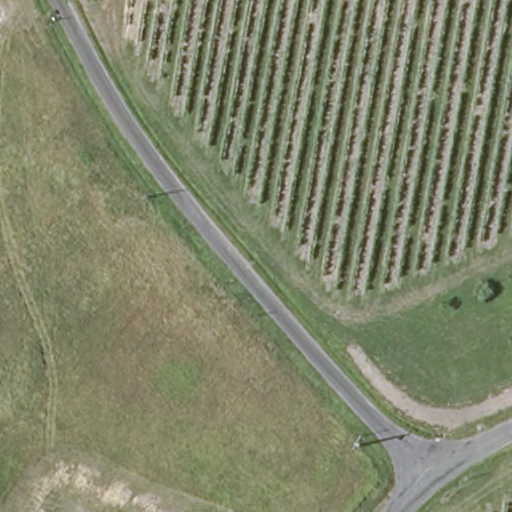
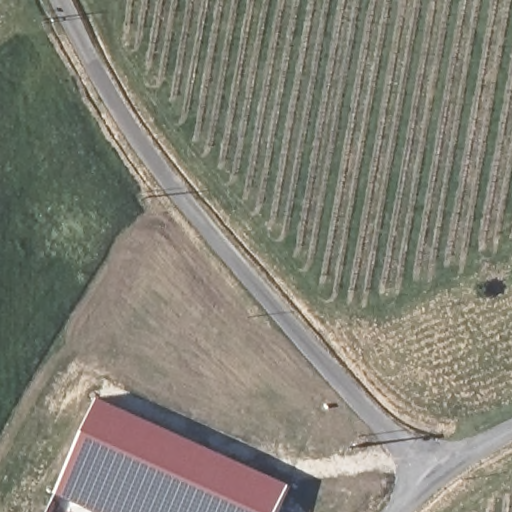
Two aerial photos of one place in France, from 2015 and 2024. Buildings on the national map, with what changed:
new [(99,512),(56,493),(99,397),(293,484),(280,512),(99,512)]

